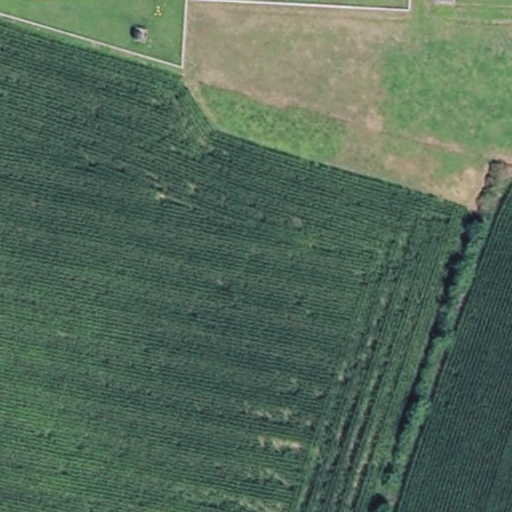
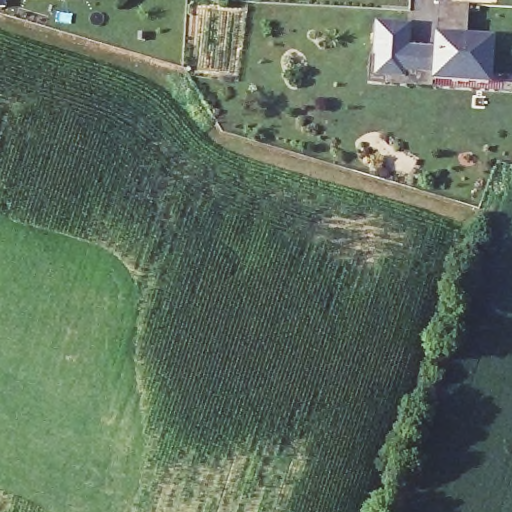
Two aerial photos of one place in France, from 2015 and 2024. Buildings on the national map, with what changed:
new [(490,85),(430,82),(431,74),(404,72),(404,79),(375,77),(376,57),(372,57),(374,24),(408,26),(407,50),(432,51),(432,35),(436,35),(437,2),(467,4),(466,36),(492,37),(491,70),(512,71),(512,86),(490,85)]

